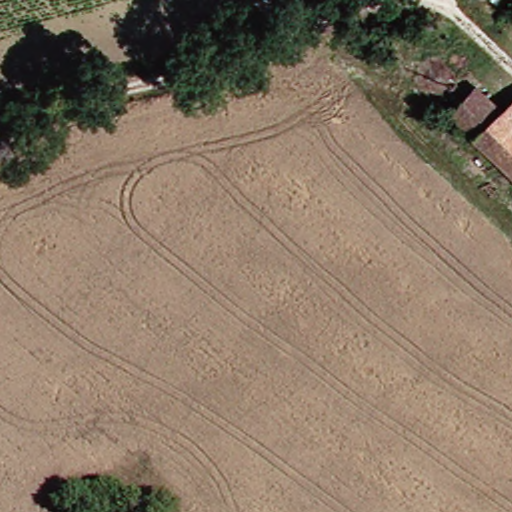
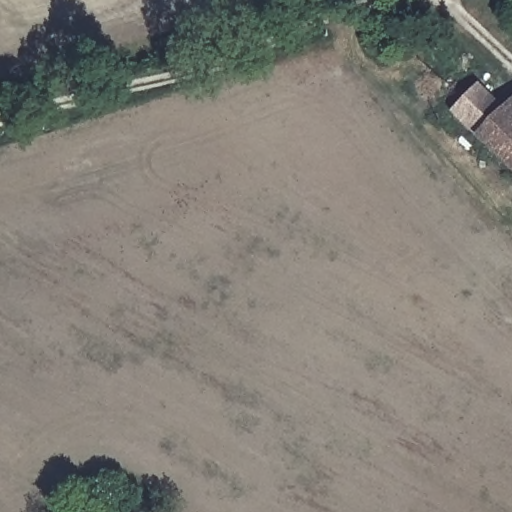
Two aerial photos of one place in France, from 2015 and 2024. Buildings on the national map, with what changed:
unchanged [(512,122),(512,171),(452,114),(476,89),(512,122)]

